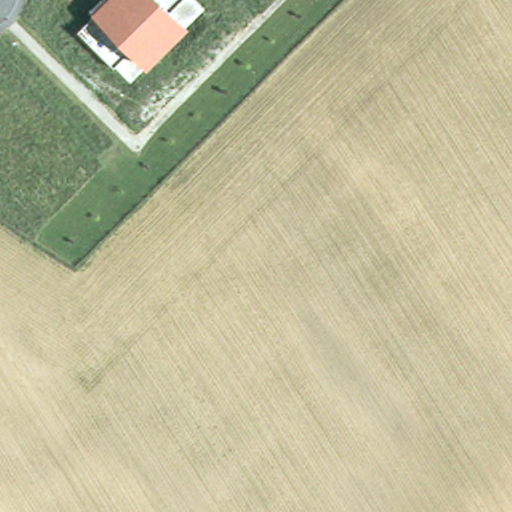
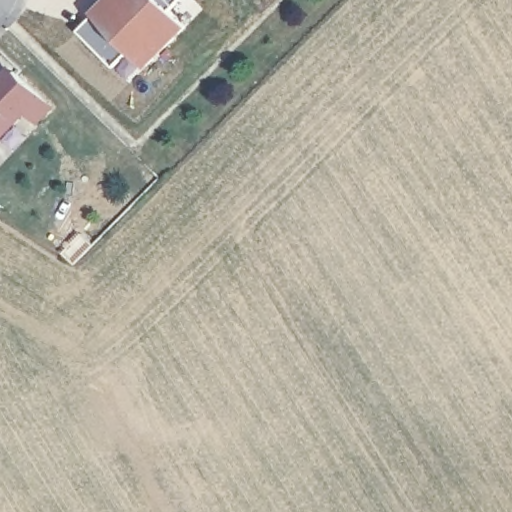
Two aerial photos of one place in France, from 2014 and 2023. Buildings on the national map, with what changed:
unchanged [(97,11),(105,18),(120,0),(196,0),(205,9),(132,80),(82,29),(97,11)]
new [(36,124),(25,114),(0,140),(0,72),(10,63),(54,104),(36,124)]

